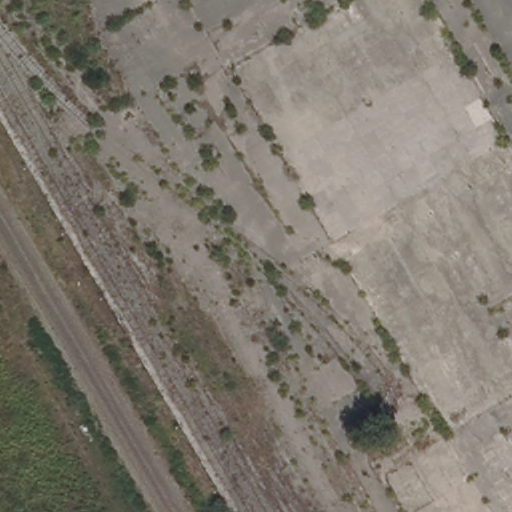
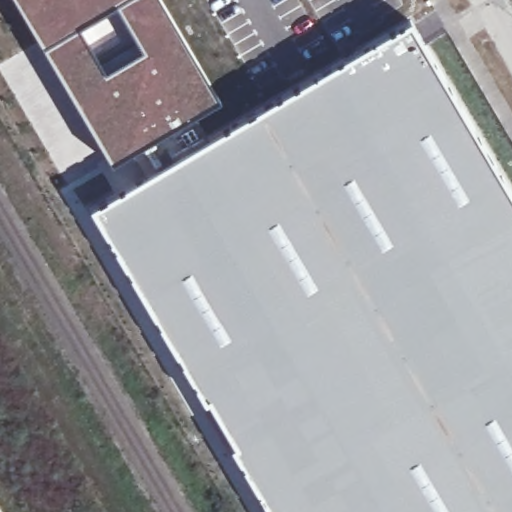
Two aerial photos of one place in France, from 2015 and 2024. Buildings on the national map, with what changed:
new [(512,223),(512,512),(242,512),(181,410),(83,219),(396,26),(512,223)]

